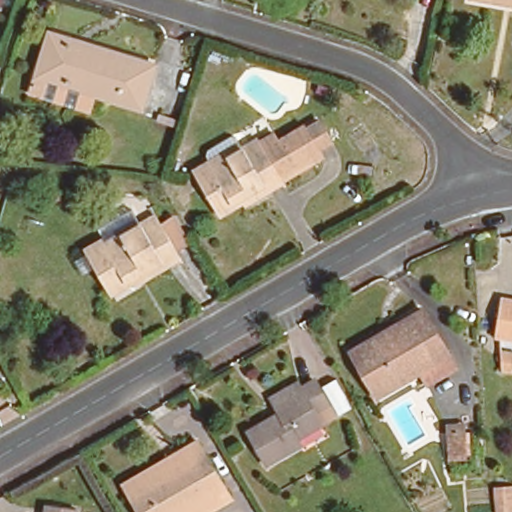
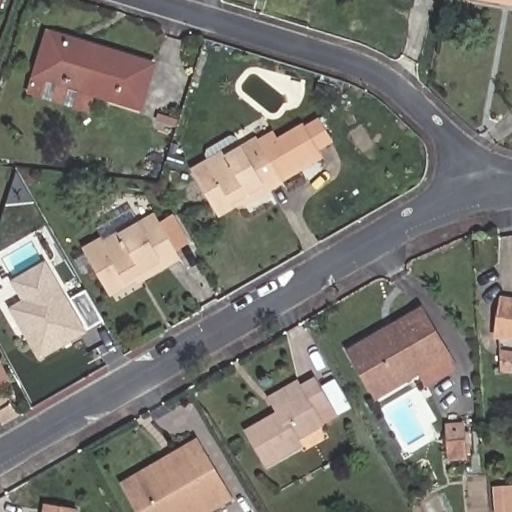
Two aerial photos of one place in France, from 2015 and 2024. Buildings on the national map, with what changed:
unchanged [(37,91),(42,72),(54,30),(72,36),(132,54),(157,61),(145,103),(97,89),(94,101),(82,98),(81,104),(37,91)]
unchanged [(284,186),(250,205),(248,202),(220,218),(194,171),(216,158),(211,150),(242,132),(250,146),(259,142),(273,134),(279,145),(307,129),(318,123),(333,149),(322,156),(281,180),(281,181),(282,182),(284,186)]
unchanged [(132,279),(131,276),(105,291),(81,248),(133,217),(135,220),(149,212),(163,204),(184,241),(170,249),(174,255),(132,279)]
new [(87,334),(39,361),(9,309),(22,302),(11,282),(46,262),(87,334)]
unchanged [(421,377),(413,364),(372,388),(350,351),(346,343),(387,319),(417,301),(443,346),(451,360),(421,377)]
unchanged [(323,405),(308,414),(316,426),(290,441),(293,446),(262,464),(244,432),(274,414),(271,408),(266,399),(291,384),(294,389),(308,381),(323,405)]
unchanged [(462,428),(462,454),(450,454),(450,428),(462,428)]
unchanged [(224,496),(196,512),(137,512),(125,492),(119,481),(166,453),(191,438),(224,496)]
unchanged [(46,496),(77,501),(75,512),(43,512),(46,496)]

